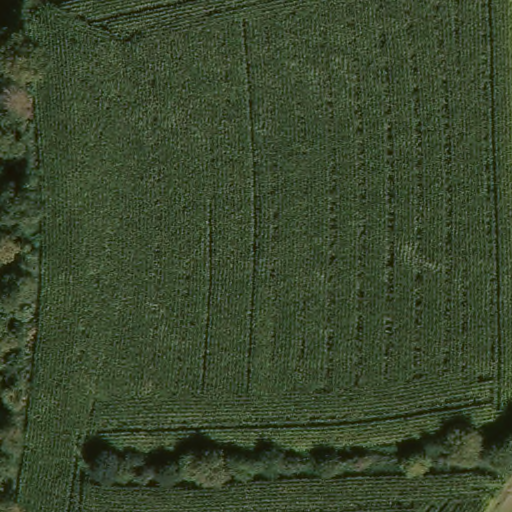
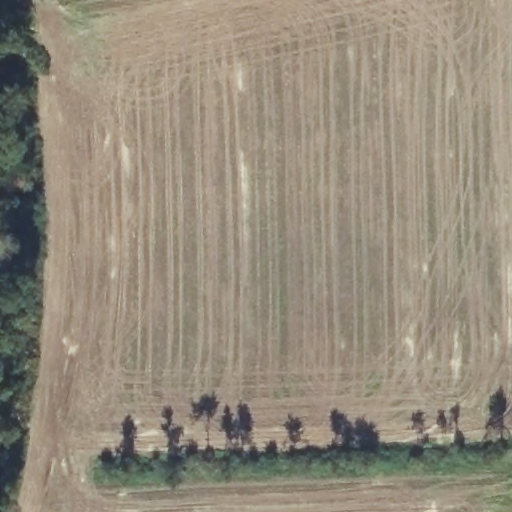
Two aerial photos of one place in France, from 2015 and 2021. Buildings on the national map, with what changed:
[]

